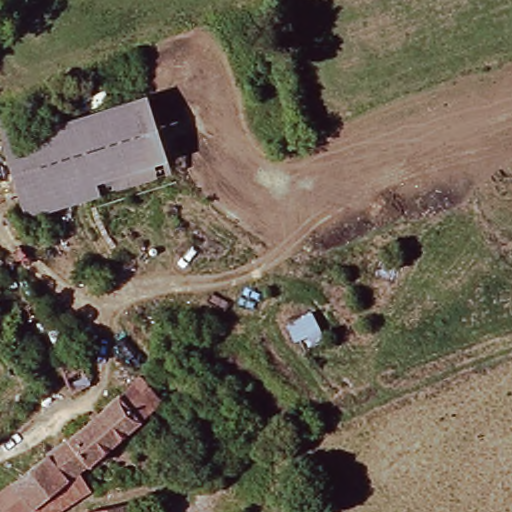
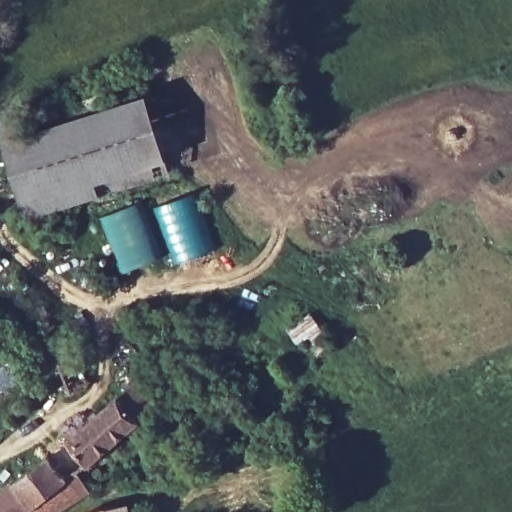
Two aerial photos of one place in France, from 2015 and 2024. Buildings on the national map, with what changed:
unchanged [(147,106),(169,170),(28,218),(6,153),(147,106)]
new [(195,191),(214,250),(172,265),(152,207),(195,191)]
new [(139,201),(161,259),(121,274),(99,217),(139,201)]
demolished [(333,276),(385,255),(393,278),(354,293),(363,314),(351,318),(333,276)]
unchanged [(170,425),(99,474),(92,479),(41,512),(39,512),(19,484),(155,399),(170,425)]
unchanged [(99,493),(69,512),(41,512),(92,479),(99,493)]
unchanged [(39,512),(0,512),(0,496),(19,484),(39,512)]
unchanged [(95,512),(124,503),(126,512),(95,512)]

